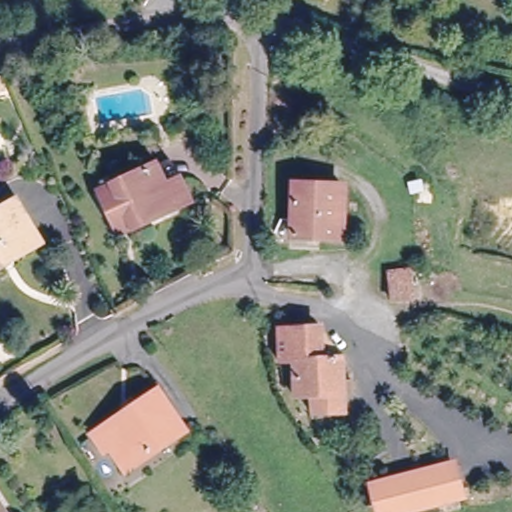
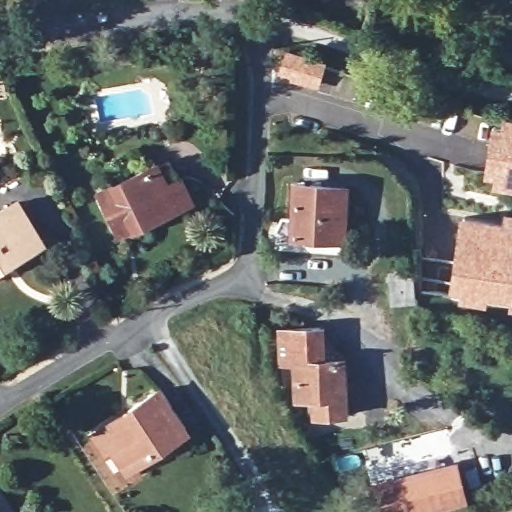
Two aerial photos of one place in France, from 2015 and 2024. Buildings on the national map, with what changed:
unchanged [(4,77),(6,88),(0,89),(0,78),(4,77)]
new [(494,174),(484,173),(491,123),(501,125),(503,113),(512,114),(512,189),(492,186),(494,174)]
unchanged [(152,159),(161,180),(177,173),(186,194),(171,201),(113,225),(95,184),(152,159)]
unchanged [(300,182),(345,185),(343,234),(298,232),(300,182)]
unchanged [(0,265),(0,212),(20,201),(42,241),(0,265)]
new [(504,207),(512,208),(512,306),(509,305),(510,295),(487,292),(485,302),(458,298),(459,288),(448,287),(460,211),(503,216),(504,207)]
unchanged [(414,295),(397,297),(394,276),(412,275),(414,295)]
unchanged [(290,387),(288,351),(274,351),(273,321),(313,320),(335,350),(338,403),(308,404),(307,387),(290,387)]
unchanged [(109,446),(104,449),(93,432),(134,405),(159,389),(185,428),(134,462),(123,469),(109,446)]
unchanged [(464,494),(410,507),(393,512),(384,512),(377,482),(384,480),(456,463),(464,494)]
unchanged [(9,512),(0,512),(0,497),(9,512)]

